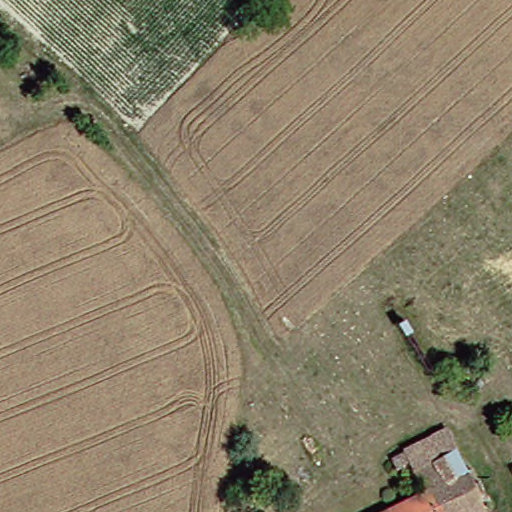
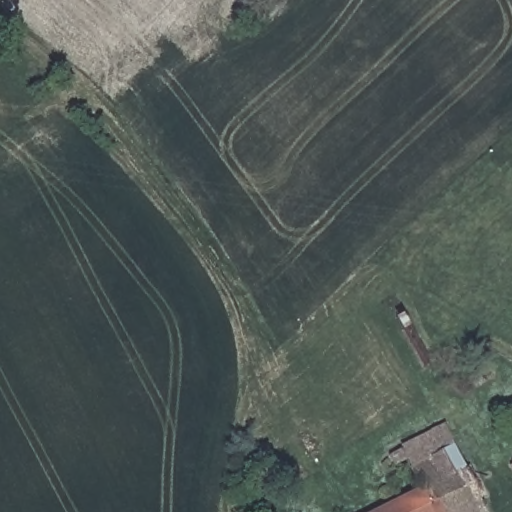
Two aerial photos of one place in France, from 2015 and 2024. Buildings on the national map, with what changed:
unchanged [(432,492),(421,468),(409,445),(456,422),(464,443),(476,468),(495,510),(492,512),(388,512),(432,492)]

